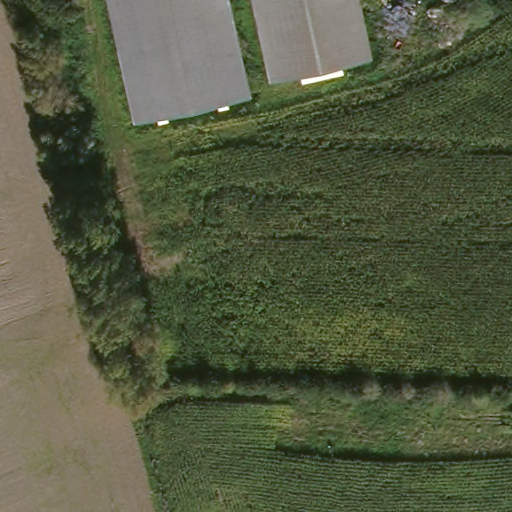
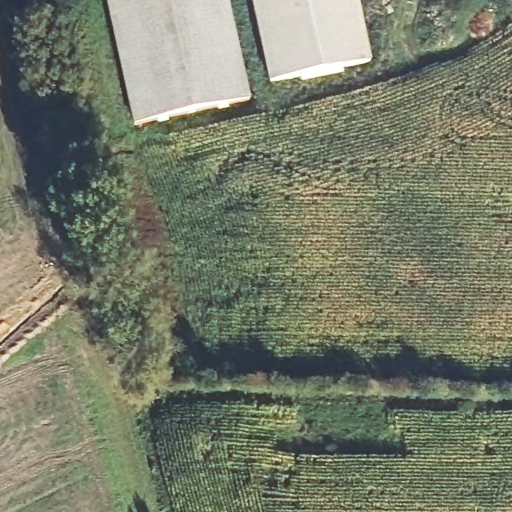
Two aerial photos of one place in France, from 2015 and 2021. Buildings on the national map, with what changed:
unchanged [(249,95),(134,121),(106,0),(227,0),(249,95)]
unchanged [(371,55),(271,78),(253,0),(358,0),(371,55)]

